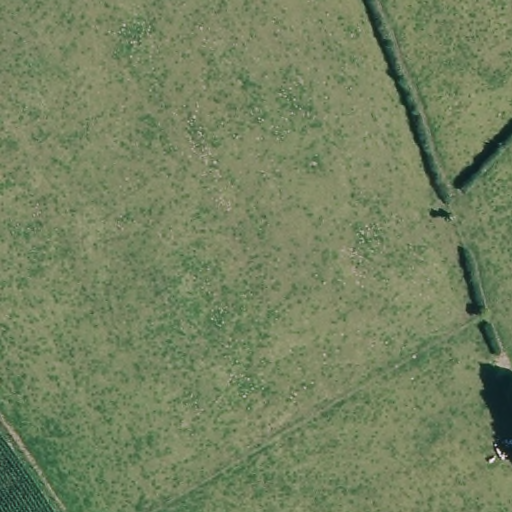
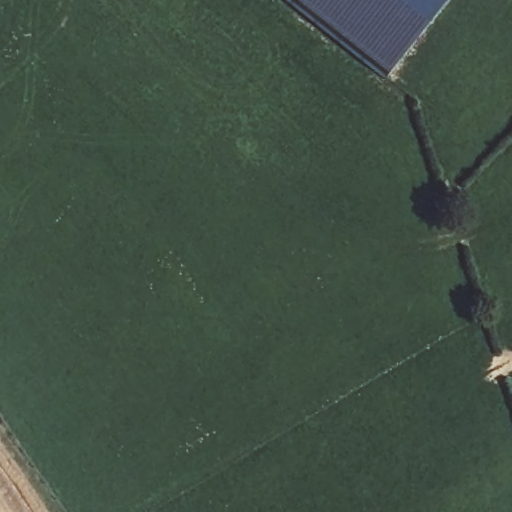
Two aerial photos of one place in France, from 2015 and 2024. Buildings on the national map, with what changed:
new [(386,79),(287,0),(449,0),(386,79)]

